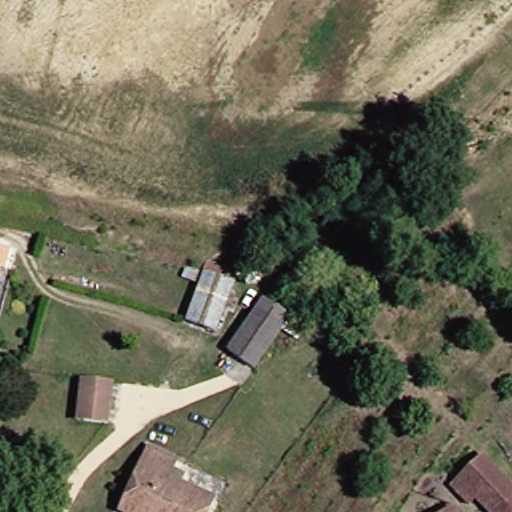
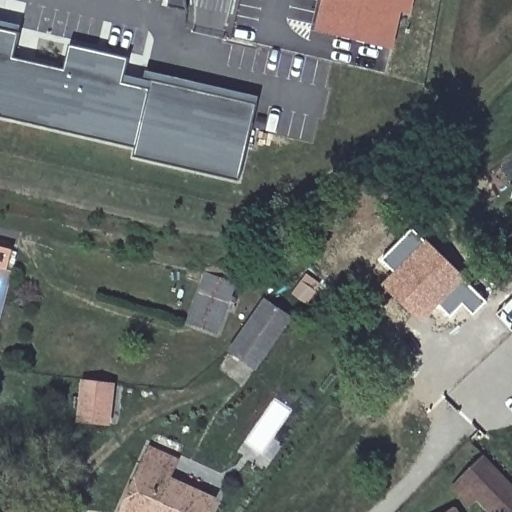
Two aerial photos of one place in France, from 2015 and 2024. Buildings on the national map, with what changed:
new [(167,6),(169,0),(185,0),(186,9),(167,6)]
new [(400,14),(392,49),(316,33),(323,0),(414,0),(410,17),(400,14)]
new [(64,69),(69,44),(129,58),(123,82),(149,88),(151,79),(256,104),(239,180),(133,156),(135,148),(0,117),(0,28),(0,21),(21,25),(20,33),(14,58),(64,69)]
new [(143,79),(145,69),(258,95),(256,104),(151,79),(149,88),(123,82),(125,74),(143,79)]
new [(474,315),(462,304),(450,316),(440,305),(422,323),(381,284),(394,273),(383,260),(415,229),(487,302),(474,315)]
unchanged [(0,263),(0,244),(15,248),(10,266),(0,263)]
unchanged [(240,282),(223,329),(193,318),(211,270),(240,282)]
unchanged [(287,322),(260,364),(234,348),(250,324),(262,304),(266,308),(287,322)]
unchanged [(114,424),(81,419),(84,379),(118,381),(114,424)]
unchanged [(126,504),(150,450),(175,461),(166,481),(214,501),(209,512),(122,512),(126,504)]
unchanged [(458,481),(482,459),(512,489),(512,512),(489,512),(458,481)]
unchanged [(456,512),(451,512),(455,510),(456,512)]

